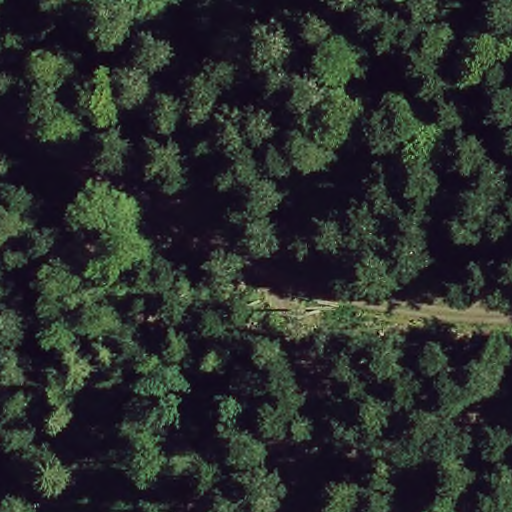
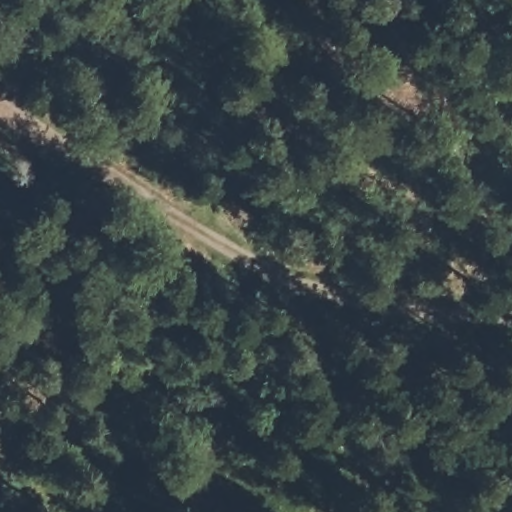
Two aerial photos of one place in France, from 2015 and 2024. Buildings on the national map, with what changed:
unchanged [(258,169),(210,165),(213,138),(249,139),(258,169)]

